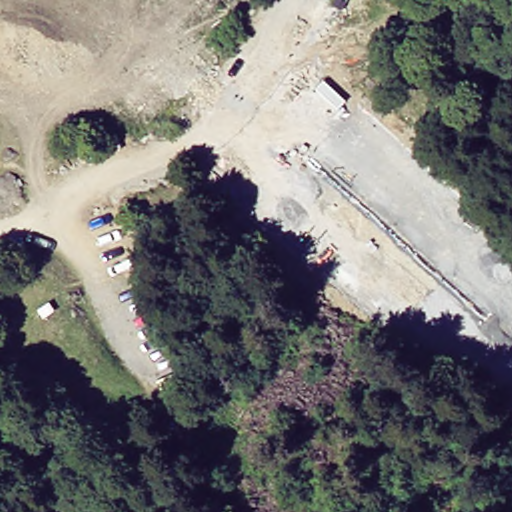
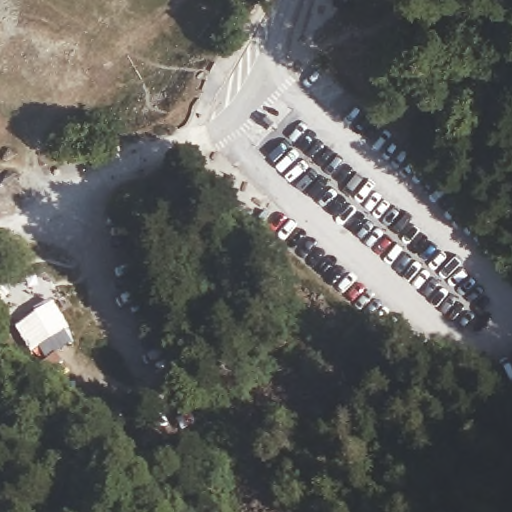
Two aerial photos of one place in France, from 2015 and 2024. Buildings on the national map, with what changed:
new [(49,301),(65,327),(61,329),(67,340),(42,356),(35,345),(27,350),(11,324),(31,312),(49,301)]
new [(112,429),(104,441),(94,434),(102,422),(112,429)]

